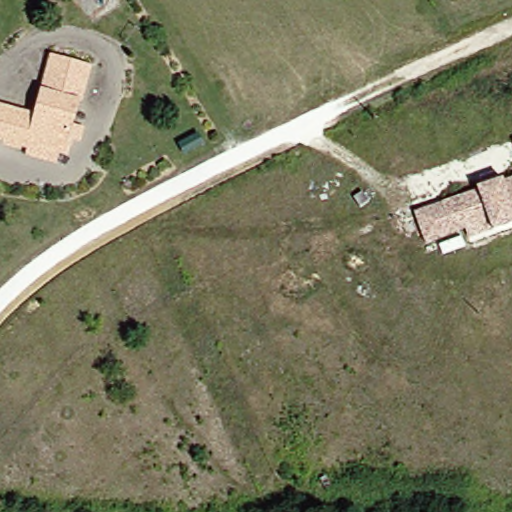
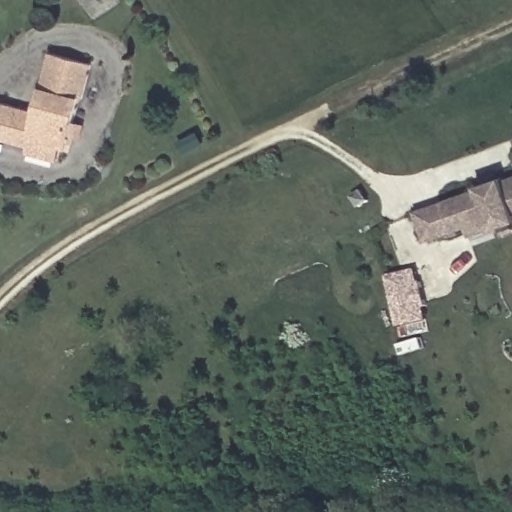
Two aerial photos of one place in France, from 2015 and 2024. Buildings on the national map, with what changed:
unchanged [(32,109),(50,54),(93,68),(81,101),(75,101),(60,148),(23,135),(21,145),(2,138),(0,138),(0,98),(13,102),(32,109)]
unchanged [(511,140),(512,140),(512,142),(511,140)]
unchanged [(490,232),(488,223),(425,246),(413,209),(512,176),(512,224),(490,232)]
new [(400,326),(390,279),(419,273),(430,319),(400,326)]

